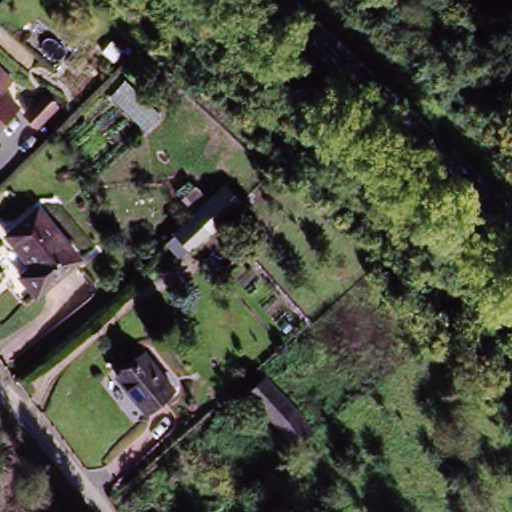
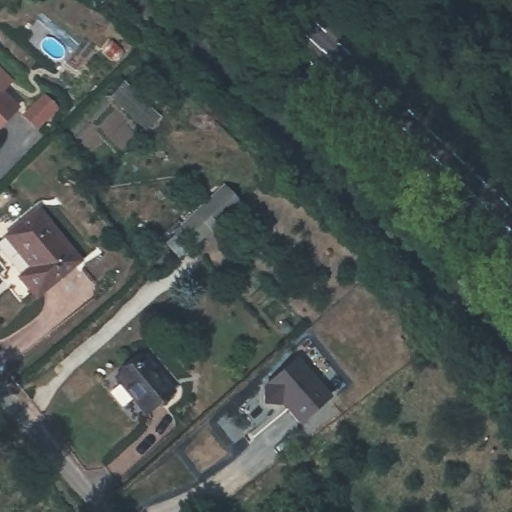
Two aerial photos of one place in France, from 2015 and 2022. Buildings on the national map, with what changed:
unchanged [(0,127),(0,99),(13,114),(0,127)]
unchanged [(59,116),(38,135),(26,122),(46,103),(59,116)]
unchanged [(175,233),(174,233),(200,210),(226,186),(243,204),(216,229),(193,251),(175,233)]
unchanged [(79,265),(35,298),(22,280),(34,271),(5,237),(35,212),(79,265)]
unchanged [(96,286),(85,272),(104,255),(116,269),(96,286)]
unchanged [(173,386),(144,412),(113,378),(145,353),(173,386)]
new [(263,385),(300,356),(331,395),(299,423),(281,403),(261,402),(263,385)]
demolished [(311,428),(293,444),(248,396),(267,380),(311,428)]

